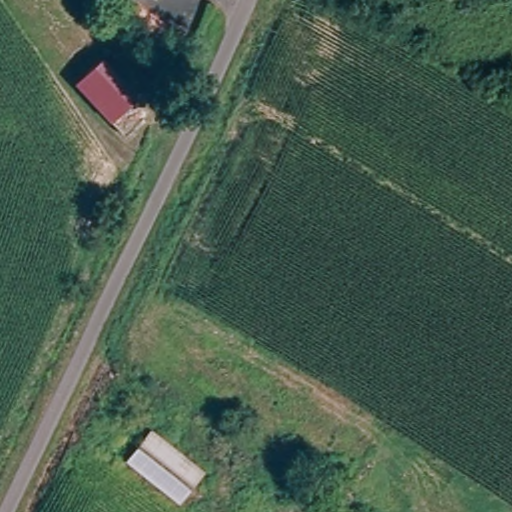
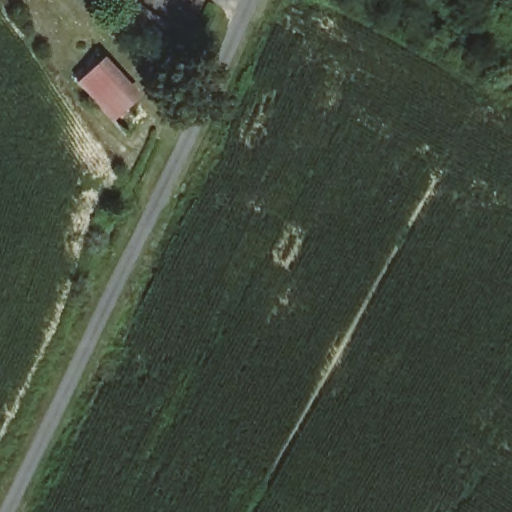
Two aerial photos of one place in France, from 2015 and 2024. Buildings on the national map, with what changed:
unchanged [(135,0),(161,21),(155,29),(164,37),(157,46),(123,19),(121,16),(133,0),(135,0)]
unchanged [(82,92),(106,69),(140,103),(117,126),(82,92)]
demolished [(204,472),(178,504),(126,460),(149,430),(204,472)]

